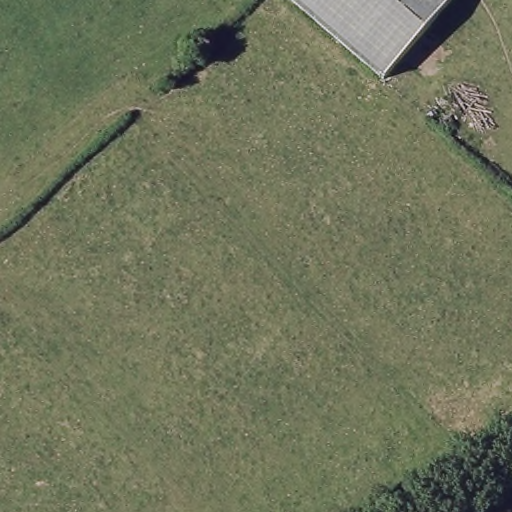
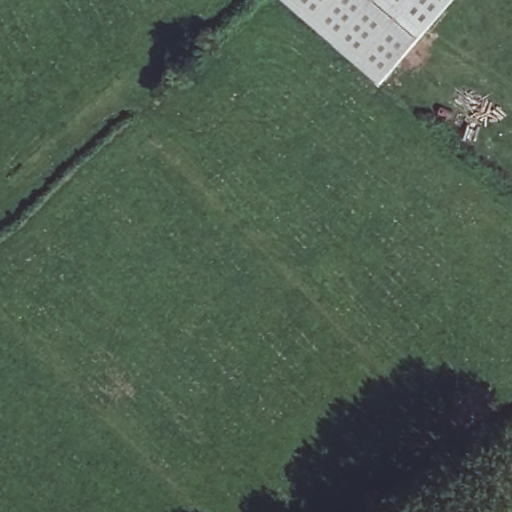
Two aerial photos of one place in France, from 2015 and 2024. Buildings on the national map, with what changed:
unchanged [(293,0),(452,0),(383,80),(293,0)]

